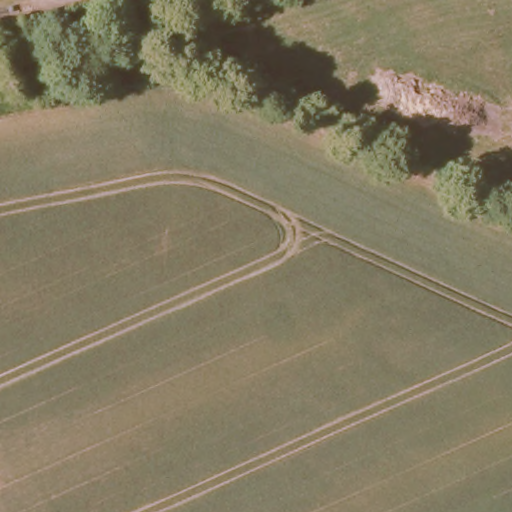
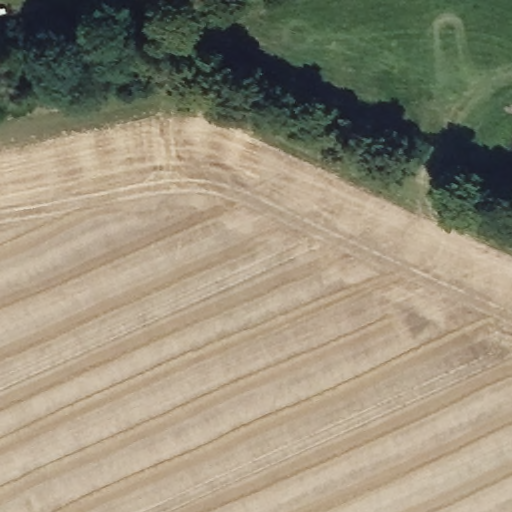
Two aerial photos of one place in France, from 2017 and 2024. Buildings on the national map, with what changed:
[]

